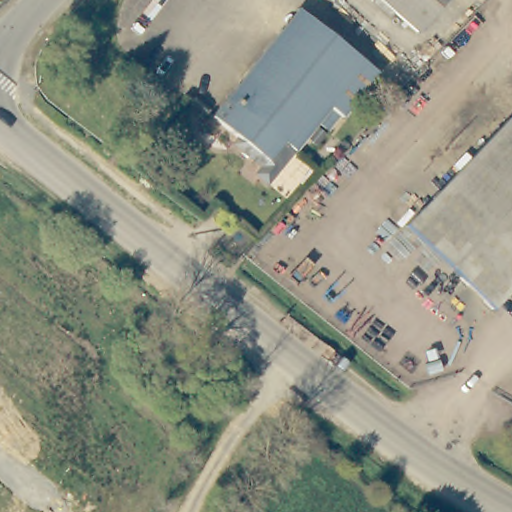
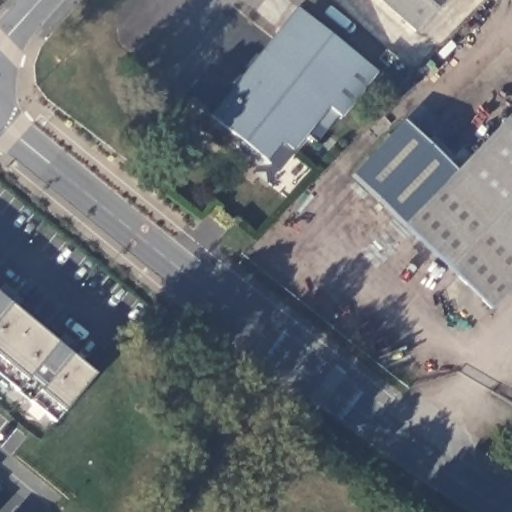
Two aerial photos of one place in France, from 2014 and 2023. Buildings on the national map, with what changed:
unchanged [(410,30),(378,0),(439,0),(410,30)]
unchanged [(373,73),(338,115),(324,104),(260,179),(248,169),(254,161),(234,144),(239,138),(207,111),(296,6),(373,73)]
new [(508,117),(512,113),(512,121),(508,117)]
unchanged [(512,121),(512,285),(490,308),(404,227),(508,117),(512,121)]
new [(404,227),(352,175),(403,119),(457,171),(404,227)]
unchanged [(224,233),(211,222),(219,212),(233,223),(224,233)]
new [(56,422),(10,385),(7,393),(0,388),(0,296),(93,373),(56,422)]

